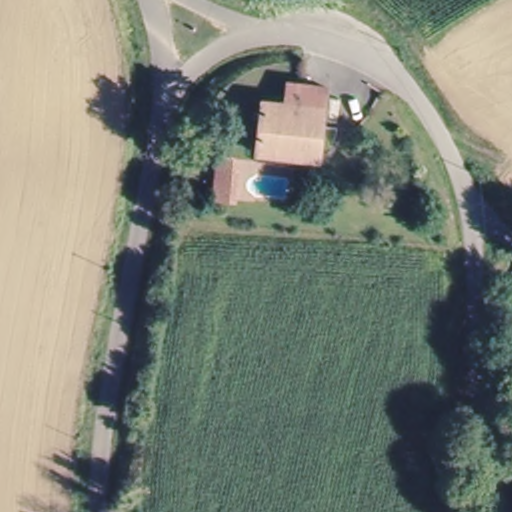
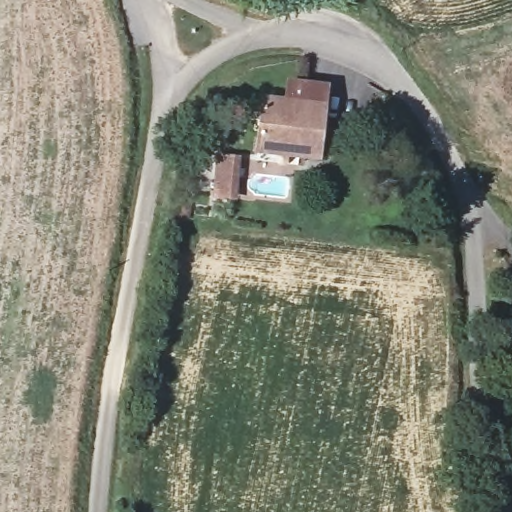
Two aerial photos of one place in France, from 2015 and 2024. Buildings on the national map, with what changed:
unchanged [(267,92),(306,91),(308,104),(319,103),(320,122),(312,122),(317,162),(264,165),(257,115),(261,92),(267,92)]
unchanged [(221,155),(237,155),(238,190),(238,195),(223,195),(223,191),(221,155)]

